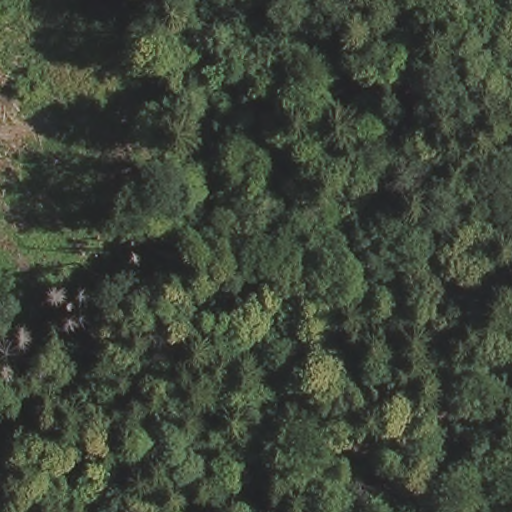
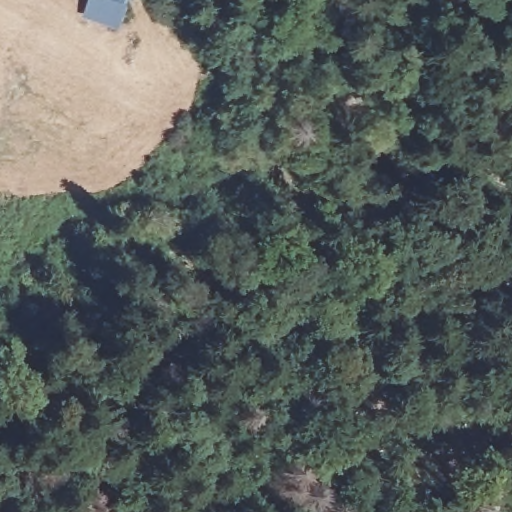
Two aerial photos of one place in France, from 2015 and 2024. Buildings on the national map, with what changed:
new [(86,0),(125,0),(118,26),(82,16),(86,0)]

